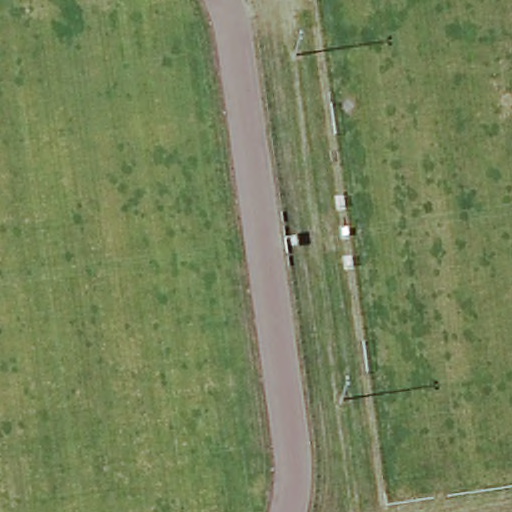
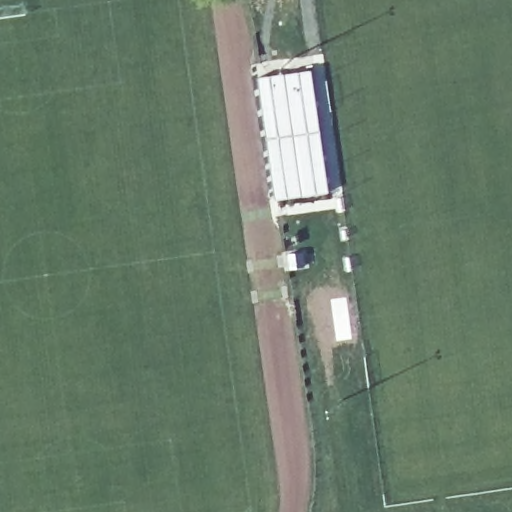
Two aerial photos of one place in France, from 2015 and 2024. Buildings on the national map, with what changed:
new [(314,67),(332,192),(276,200),(265,137),(258,77),(314,67)]

